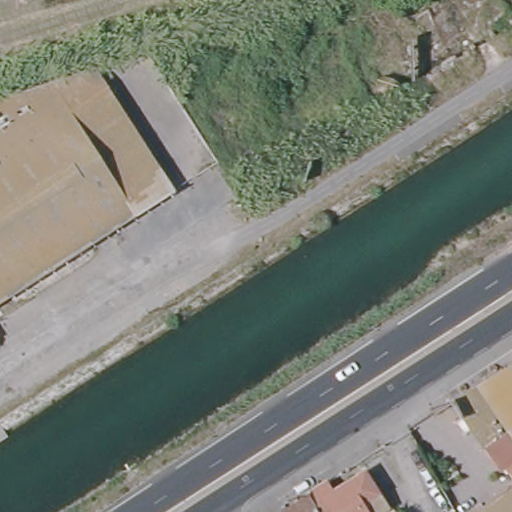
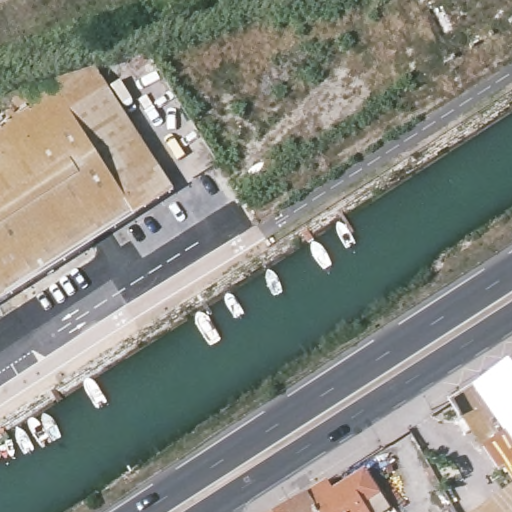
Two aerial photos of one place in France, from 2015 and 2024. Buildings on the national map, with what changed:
unchanged [(0,281),(0,133),(11,126),(0,108),(0,98),(94,68),(173,190),(9,295),(0,281)]
unchanged [(0,301),(0,281),(9,295),(0,301)]
unchanged [(512,363),(512,433),(495,404),(467,420),(455,399),(478,385),(512,363)]
unchanged [(502,474),(487,449),(512,434),(512,479),(507,471),(502,474)]
unchanged [(324,497),(363,473),(375,492),(360,503),(365,512),(279,512),(318,487),(324,497)]
unchanged [(480,512),(512,493),(512,512),(480,512)]

